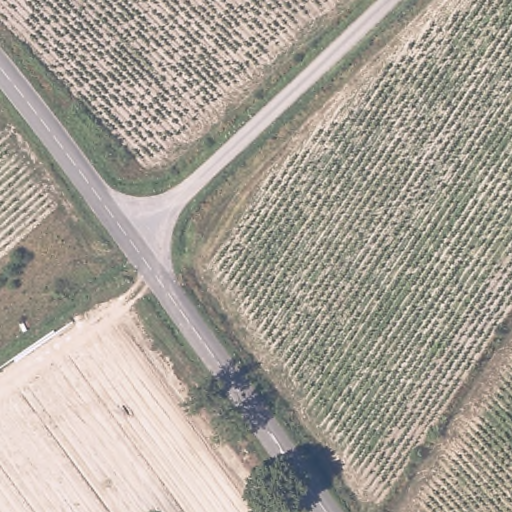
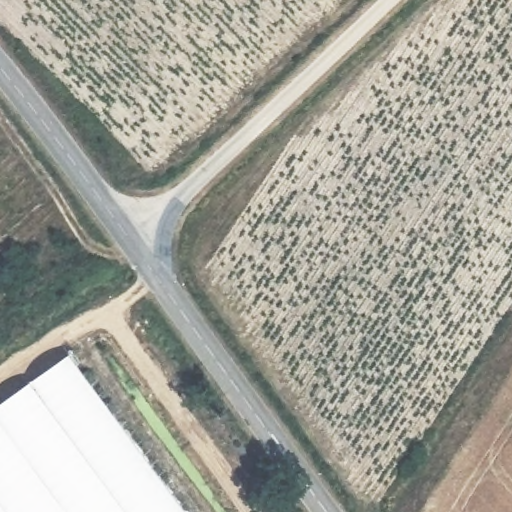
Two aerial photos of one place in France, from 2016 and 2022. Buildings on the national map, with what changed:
new [(186,512),(0,512),(0,402),(69,353),(186,512)]

